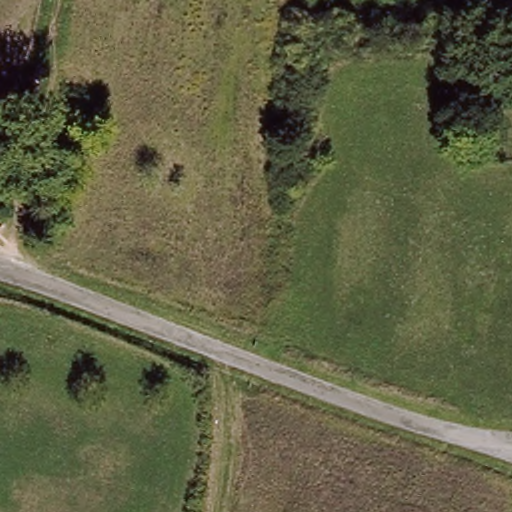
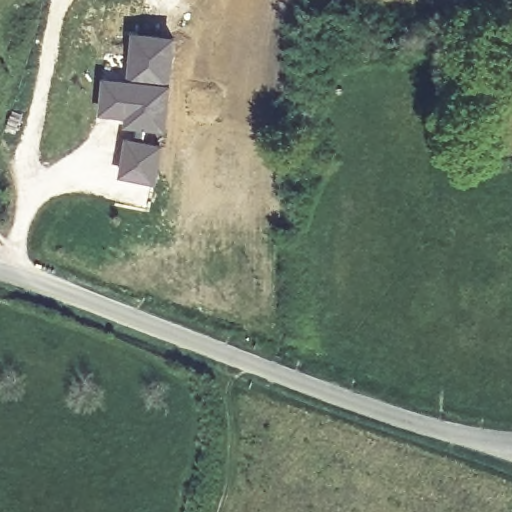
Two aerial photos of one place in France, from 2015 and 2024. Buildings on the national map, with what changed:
new [(129,140),(137,140),(138,123),(129,122),(130,114),(102,110),(106,80),(130,81),(135,35),(171,39),(169,59),(170,60),(169,74),(165,73),(160,125),(146,124),(145,142),(160,145),(154,179),(124,173),(129,140)]

